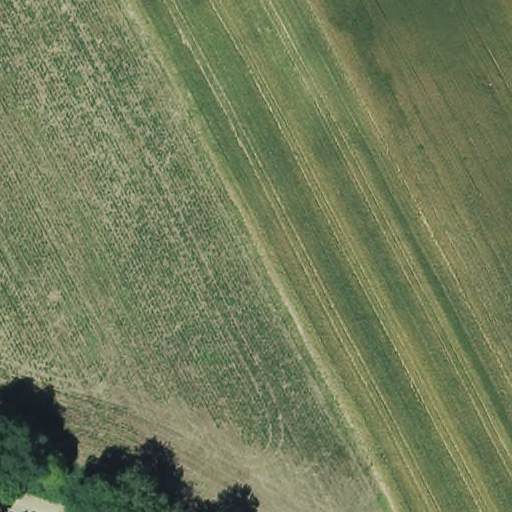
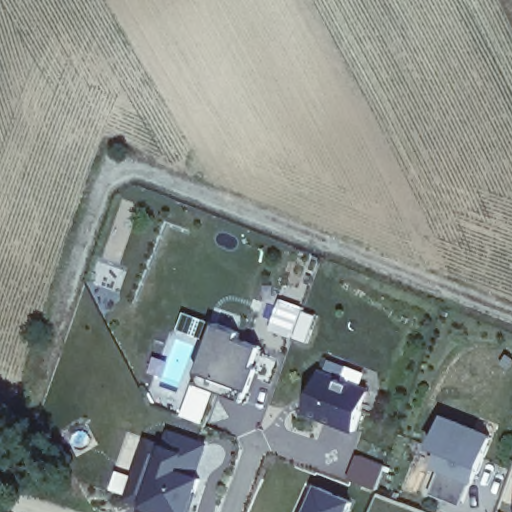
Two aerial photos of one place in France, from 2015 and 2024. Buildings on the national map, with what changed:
new [(194,382),(199,370),(216,324),(242,332),(240,339),(264,347),(256,367),(261,368),(253,392),(248,389),(243,400),(194,382)]
new [(357,433),(306,414),(321,369),(373,388),(357,433)]
new [(475,484),(469,482),(459,505),(428,493),(439,468),(434,466),(440,451),(431,448),(444,414),(494,433),(475,484)]
new [(213,441),(203,472),(213,474),(201,512),(173,512),(149,504),(172,428),(213,441)]
new [(354,452),(384,464),(374,488),(344,477),(354,452)]
new [(308,481),(353,498),(347,512),(296,512),(308,481)]

